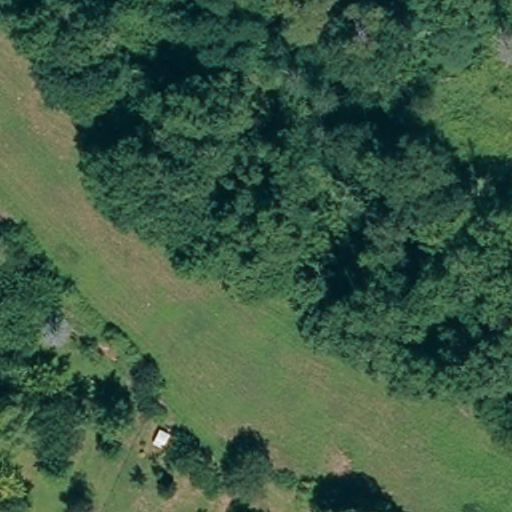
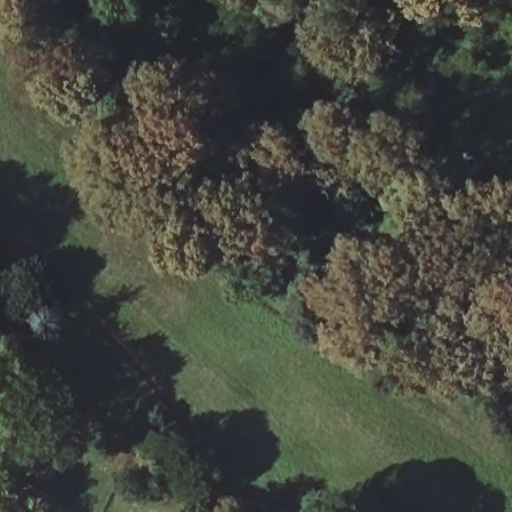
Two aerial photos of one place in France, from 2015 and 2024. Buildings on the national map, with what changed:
unchanged [(164,431),(174,436),(167,450),(157,445),(164,431)]

